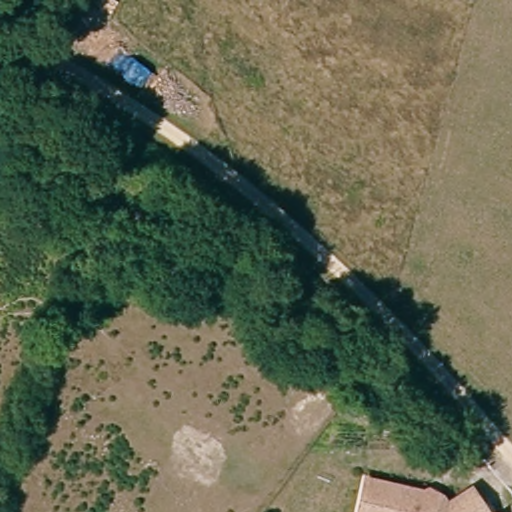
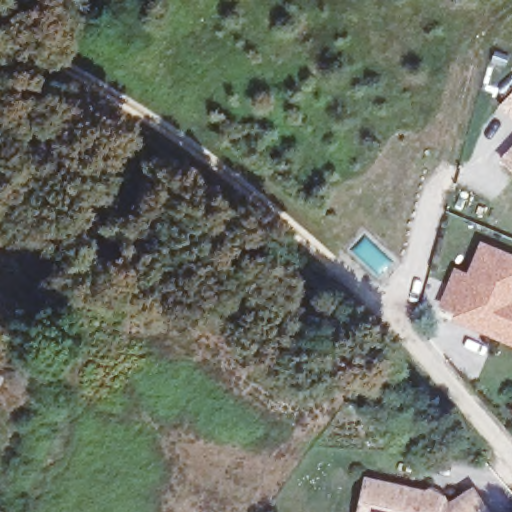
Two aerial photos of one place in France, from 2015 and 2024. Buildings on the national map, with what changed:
new [(498,106),(512,92),(512,120),(498,106)]
new [(500,160),(512,146),(512,171),(500,160)]
new [(467,272),(479,241),(512,254),(512,345),(450,320),(453,310),(438,306),(453,267),(467,272)]
unchanged [(370,480),(431,493),(432,488),(442,493),(451,505),(476,488),(491,512),(363,512),(370,480)]

